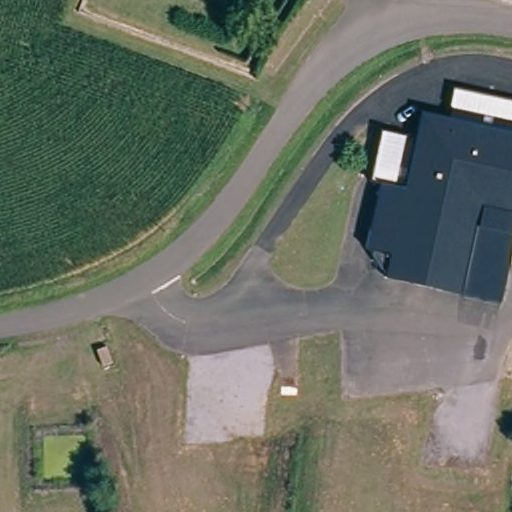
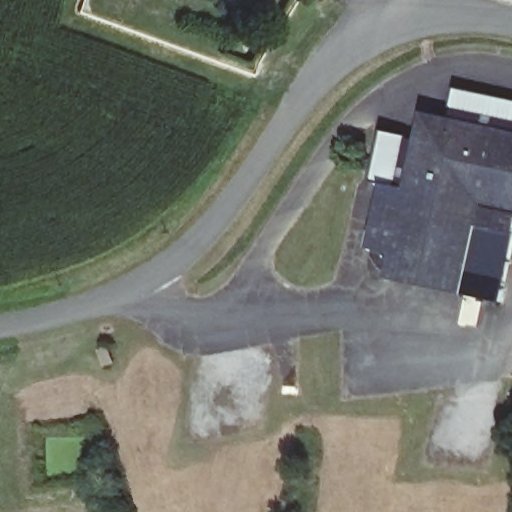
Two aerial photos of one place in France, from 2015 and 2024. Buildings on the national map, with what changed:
unchanged [(382,160),(387,133),(412,137),(411,143),(422,145),(426,115),(458,119),(460,105),(455,105),(458,92),(512,101),(512,231),(477,226),(467,296),(390,278),(376,266),(378,254),(362,250),(382,160)]
unchanged [(467,296),(477,226),(512,231),(512,266),(505,303),(467,296)]

